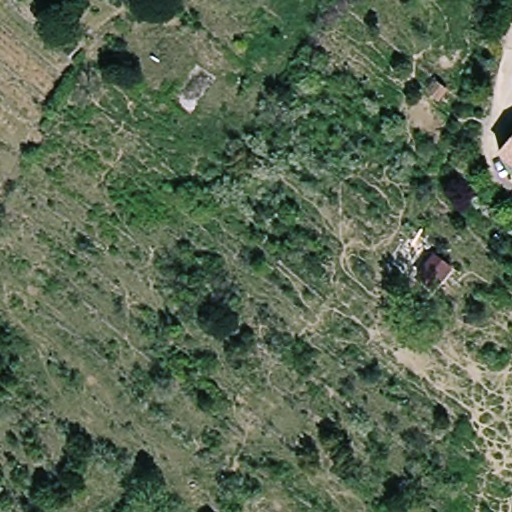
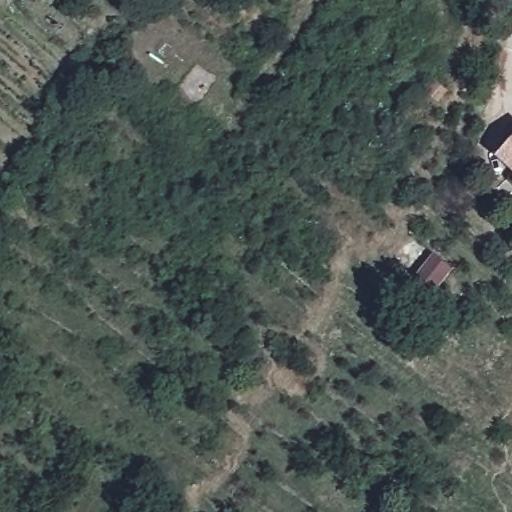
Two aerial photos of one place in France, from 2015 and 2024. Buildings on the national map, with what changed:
unchanged [(498,167),(512,141),(512,174),(498,167)]
unchanged [(0,477),(0,473),(2,475),(0,477)]

